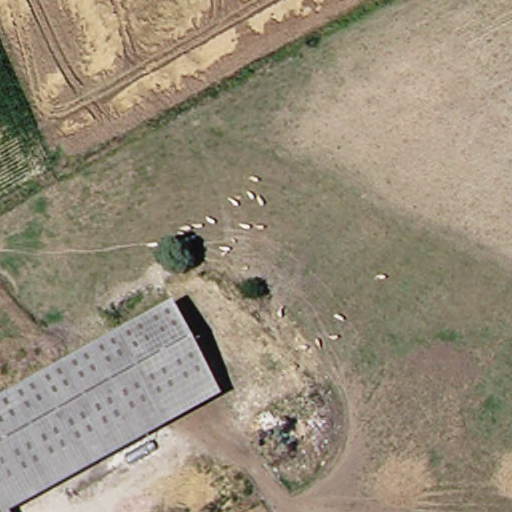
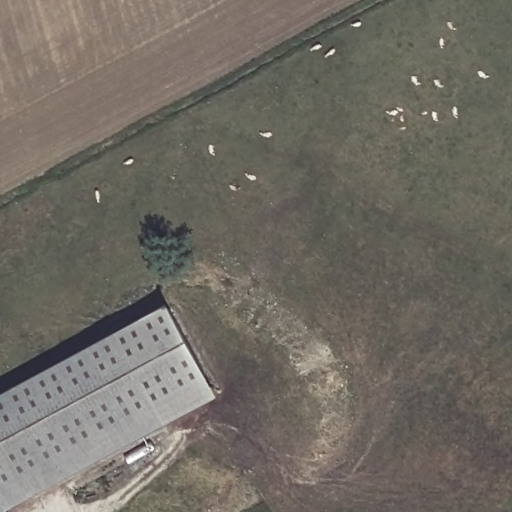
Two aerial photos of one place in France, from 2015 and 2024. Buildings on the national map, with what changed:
unchanged [(213,387),(0,495),(0,411),(179,319),(213,387)]
unchanged [(221,404),(8,510),(0,495),(213,387),(221,404)]
unchanged [(9,512),(0,512),(0,495),(8,510),(9,512)]

